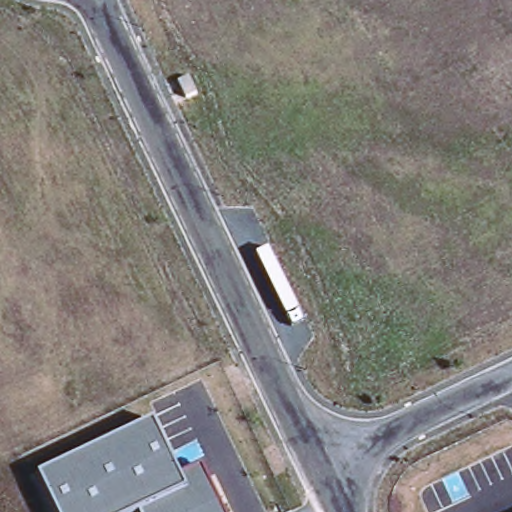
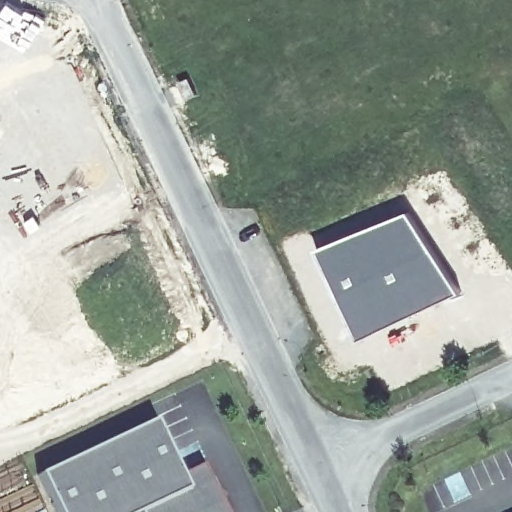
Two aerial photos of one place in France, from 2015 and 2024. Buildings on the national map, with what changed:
new [(409,208),(461,292),(359,341),(315,248),(409,208)]
unchanged [(202,463),(224,512),(139,512),(138,510),(134,512),(57,512),(40,474),(151,420),(177,475),(202,463)]

